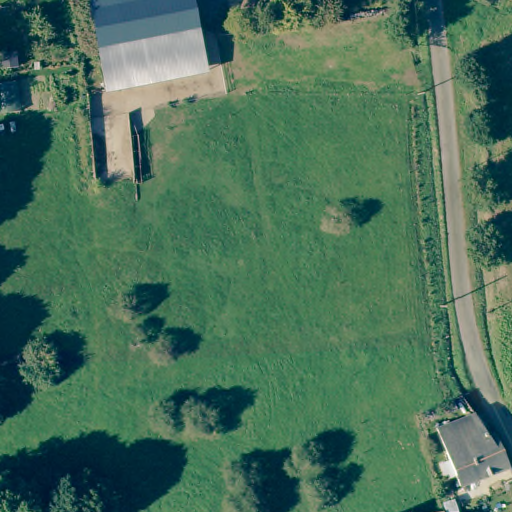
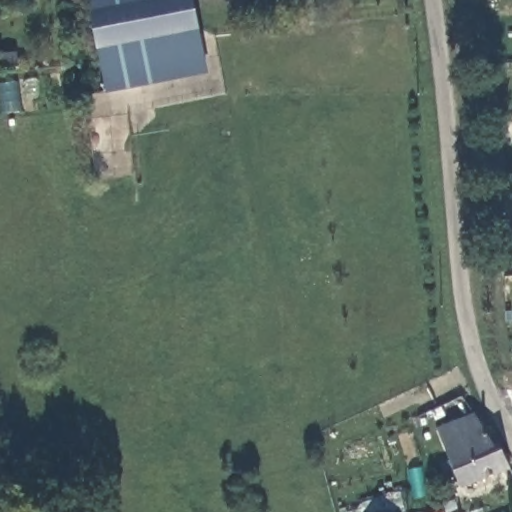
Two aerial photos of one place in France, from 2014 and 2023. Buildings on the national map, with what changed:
unchanged [(112,92),(94,0),(196,0),(210,72),(112,92)]
unchanged [(487,436),(494,433),(510,468),(460,488),(456,477),(450,480),(444,464),(450,462),(437,430),(475,415),(487,436)]

